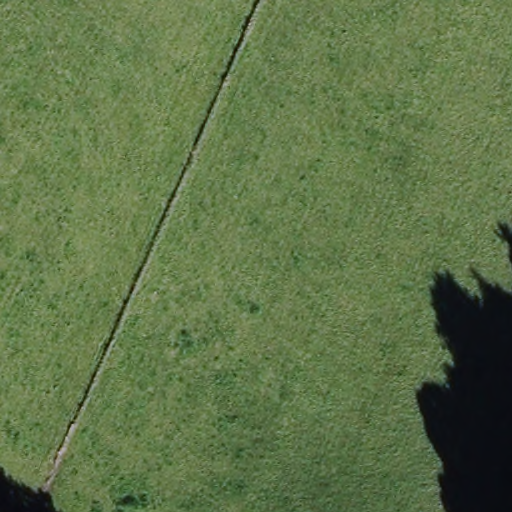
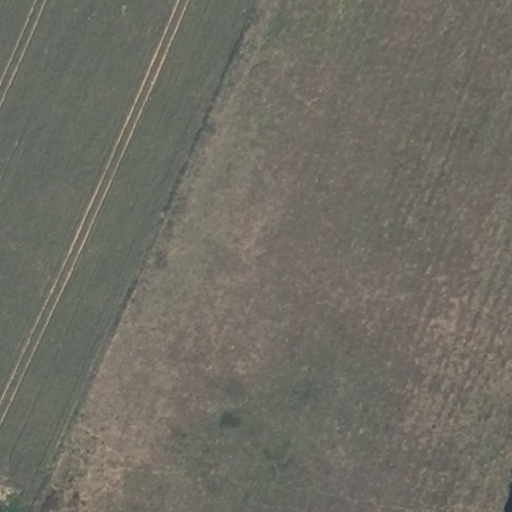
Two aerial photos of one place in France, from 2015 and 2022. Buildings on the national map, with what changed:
[]

